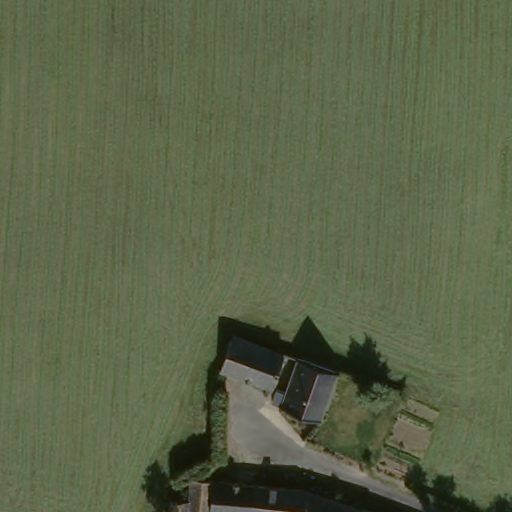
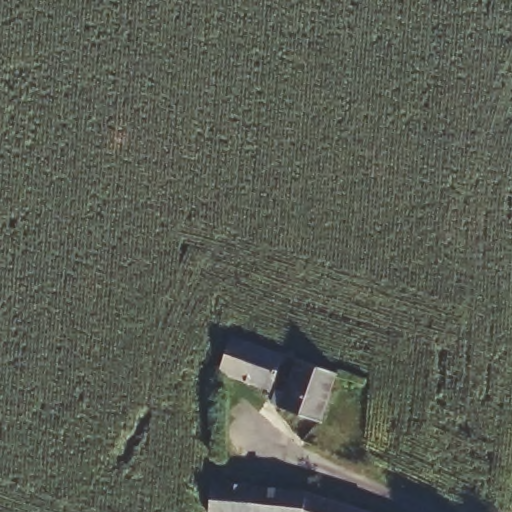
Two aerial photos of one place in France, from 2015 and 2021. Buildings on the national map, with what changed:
unchanged [(220,371),(233,340),(282,360),(270,392),(220,371)]
unchanged [(271,407),(275,395),(282,398),(295,366),(331,381),(315,424),(271,407)]
unchanged [(167,506),(187,508),(190,486),(314,498),(373,510),(373,512),(167,512),(167,506)]

